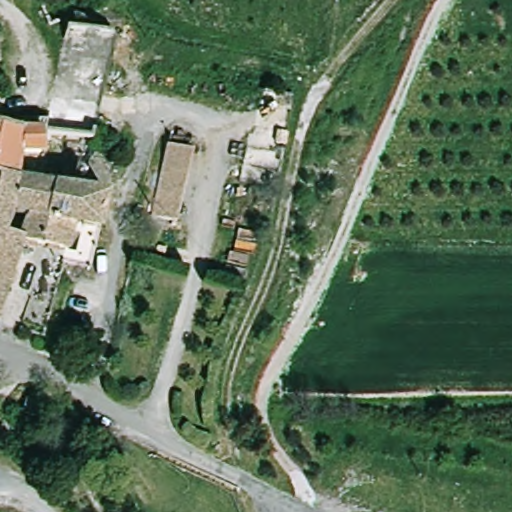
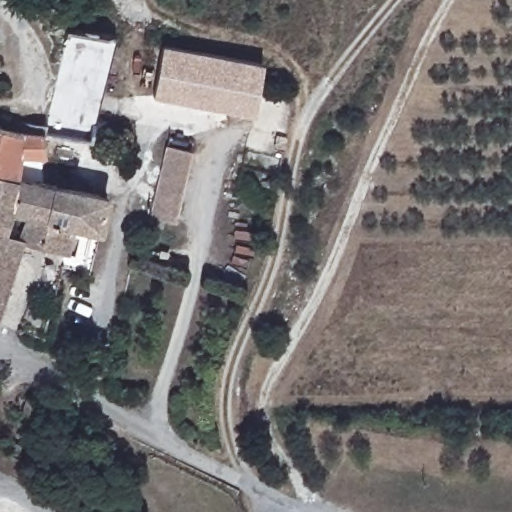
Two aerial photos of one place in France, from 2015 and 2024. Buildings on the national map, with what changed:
unchanged [(89,142),(43,135),(43,130),(63,33),(65,27),(94,33),(112,37),(89,142)]
new [(254,117),(153,99),(162,45),(263,63),(254,117)]
unchanged [(43,130),(43,135),(42,157),(42,159),(7,157),(10,127),(43,130)]
unchanged [(150,216),(167,146),(192,152),(178,224),(150,216)]
unchanged [(5,207),(7,182),(7,177),(18,179),(31,181),(36,182),(40,182),(42,159),(61,160),(63,185),(70,186),(95,187),(99,188),(97,220),(85,218),(75,247),(40,242),(20,240),(0,320),(0,220),(5,207)]

